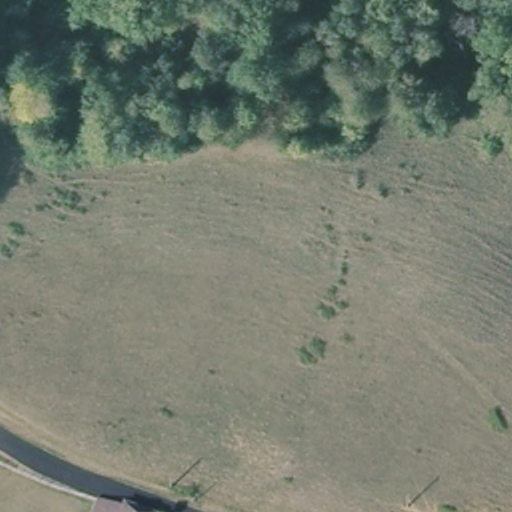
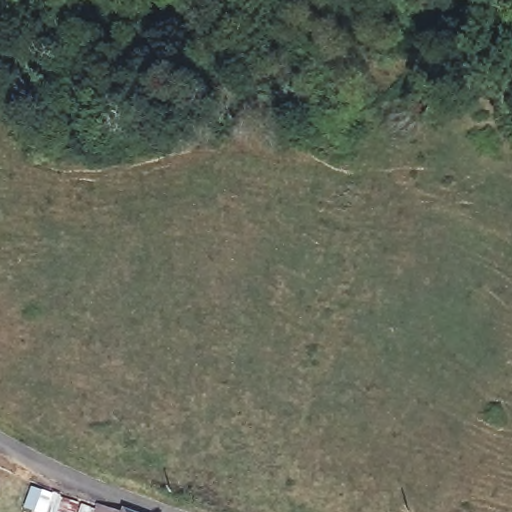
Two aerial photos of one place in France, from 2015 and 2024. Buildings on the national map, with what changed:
unchanged [(133,512),(99,512),(101,507),(104,501),(133,512)]

